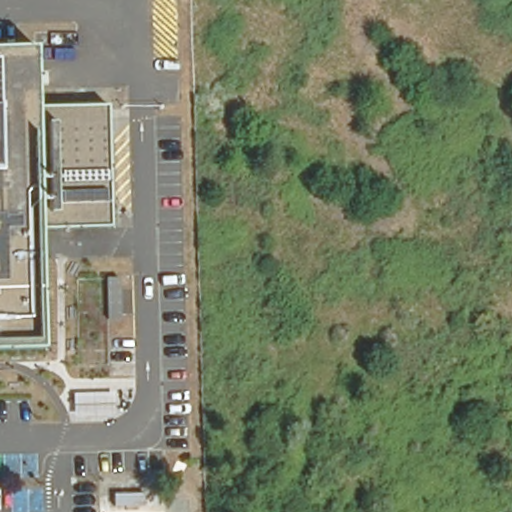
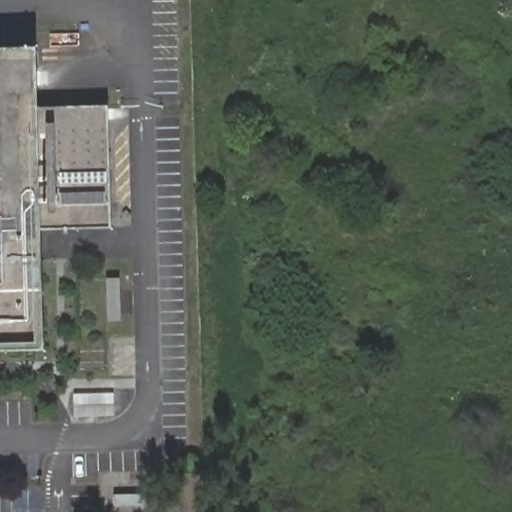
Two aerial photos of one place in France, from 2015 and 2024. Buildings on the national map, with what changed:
unchanged [(33,106),(104,105),(106,227),(36,229),(39,348),(0,349),(0,47),(31,46),(33,106)]
unchanged [(120,276),(121,319),(109,320),(108,277),(120,276)]

